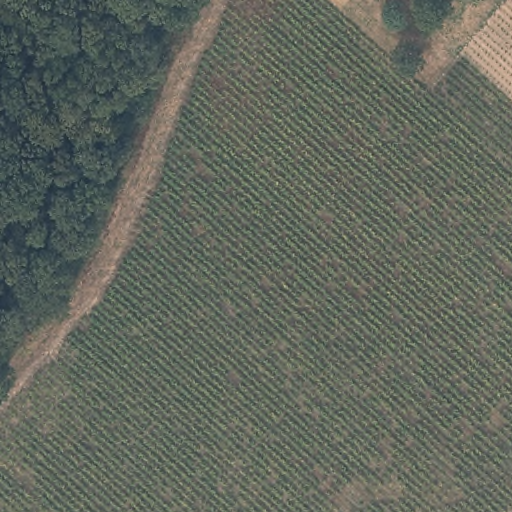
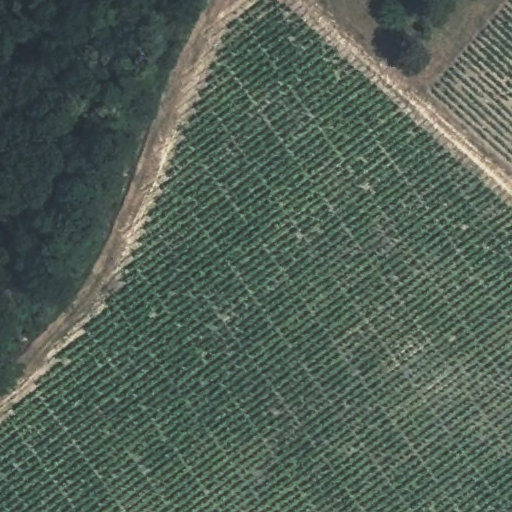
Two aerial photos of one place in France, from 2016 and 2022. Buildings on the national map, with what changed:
[]

